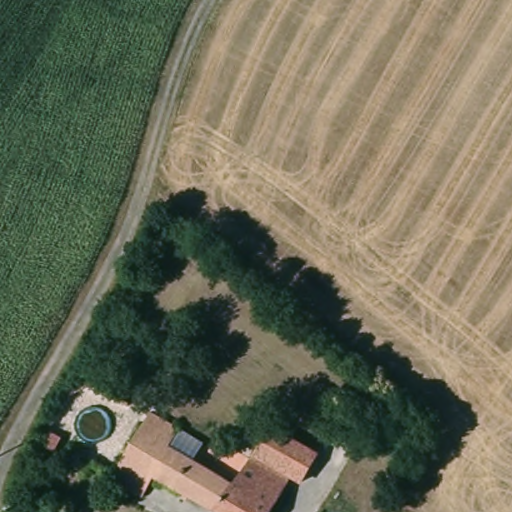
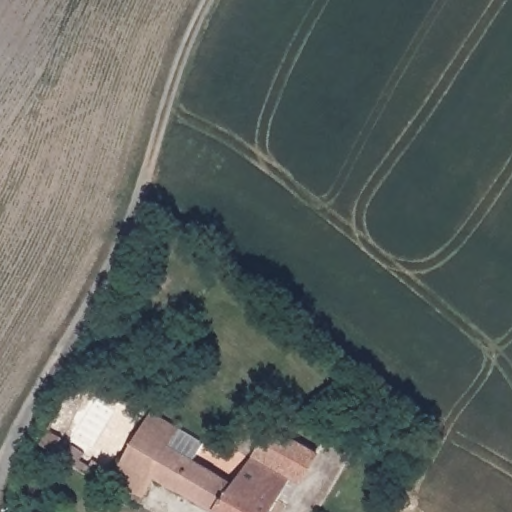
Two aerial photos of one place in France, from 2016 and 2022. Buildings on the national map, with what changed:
unchanged [(135,497),(104,476),(145,411),(202,443),(208,433),(247,455),(265,425),(307,449),(290,482),(282,478),(263,512),(212,512),(186,498),(146,476),(137,493),(135,497)]
unchanged [(74,471),(54,456),(65,439),(86,455),(74,471)]

